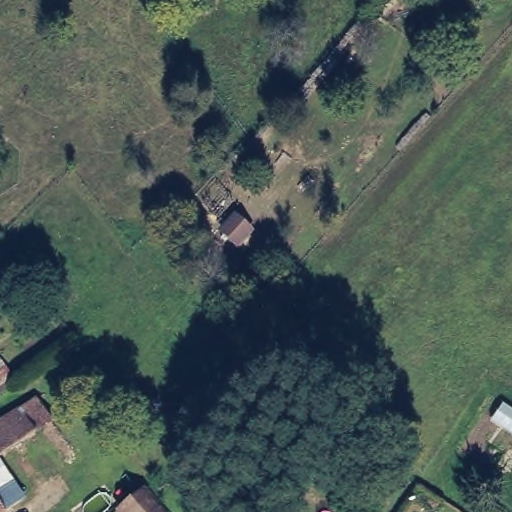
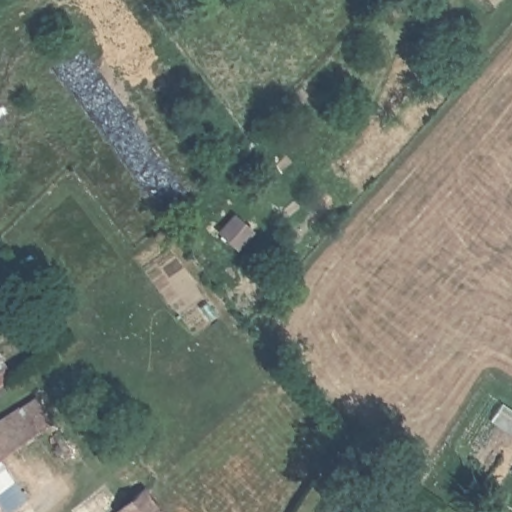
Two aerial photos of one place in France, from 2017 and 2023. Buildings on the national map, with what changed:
unchanged [(215,182),(237,202),(215,225),(198,207),(215,182)]
unchanged [(1,463),(27,499),(9,512),(0,512),(0,423),(40,398),(57,424),(1,463)]
unchanged [(511,473),(512,472),(512,474),(511,473)]
unchanged [(117,509),(140,489),(159,512),(120,512),(117,509)]

